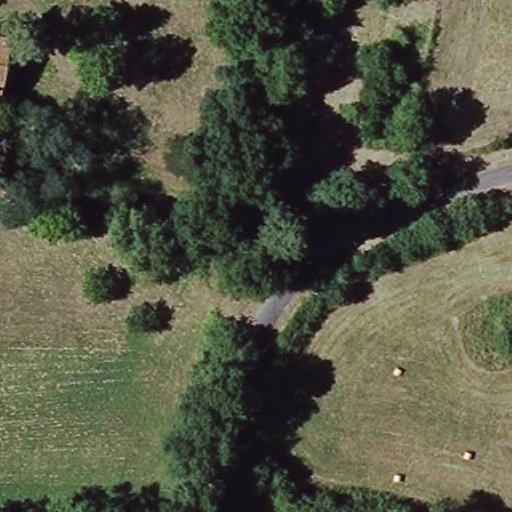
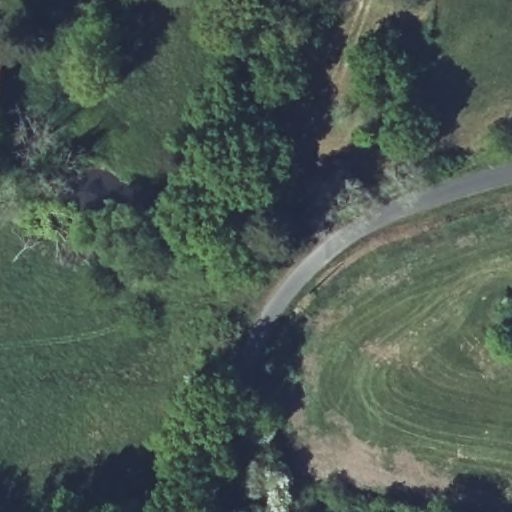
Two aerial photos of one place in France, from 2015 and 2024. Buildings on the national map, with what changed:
unchanged [(0,99),(0,45),(10,46),(1,99),(0,99)]

